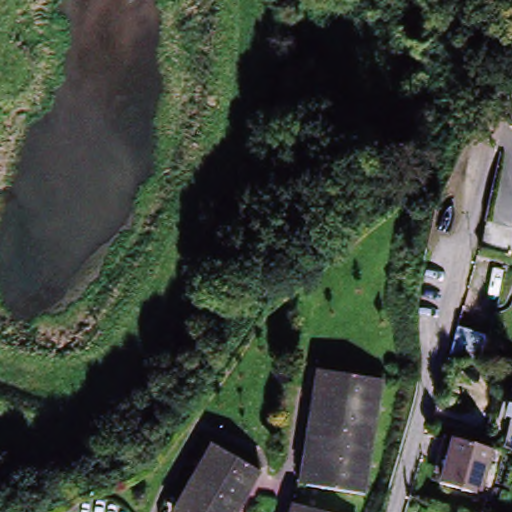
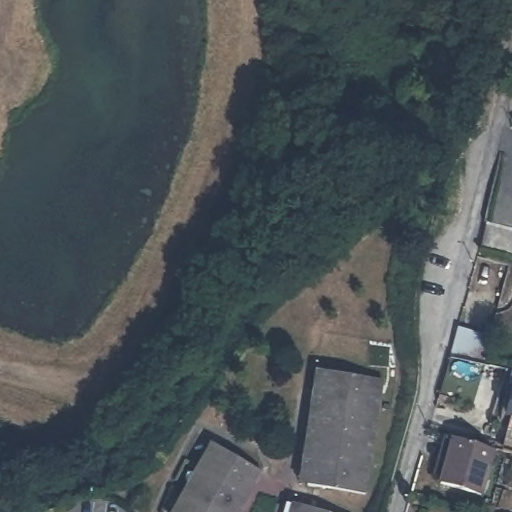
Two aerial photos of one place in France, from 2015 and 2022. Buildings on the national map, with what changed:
unchanged [(487,225),(487,223),(512,230),(512,254),(512,255),(481,249),(483,239),(487,225)]
unchanged [(457,335),(486,344),(481,361),(481,362),(451,356),(457,335)]
unchanged [(309,487),(302,486),(318,371),(326,372),(387,381),(370,495),(309,487)]
unchanged [(512,379),(512,388),(510,388),(512,379)]
unchanged [(488,494),(451,484),(442,482),(452,439),(461,442),(498,452),(488,494)]
unchanged [(196,478),(197,475),(198,473),(215,444),(221,448),(227,451),(229,452),(265,473),(266,473),(272,477),(248,512),(176,512),(196,478)]
unchanged [(296,504),(302,506),(324,512),(293,512),(296,504)]

